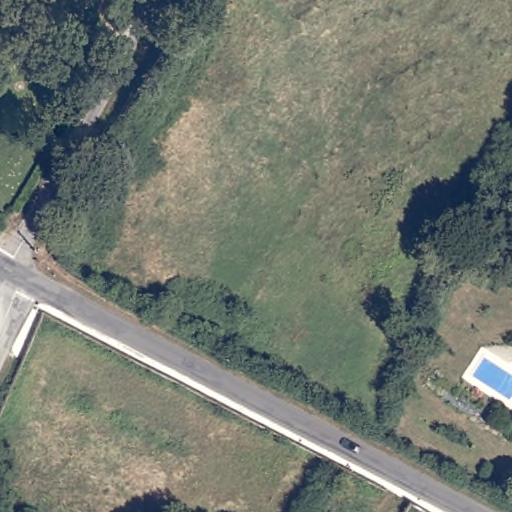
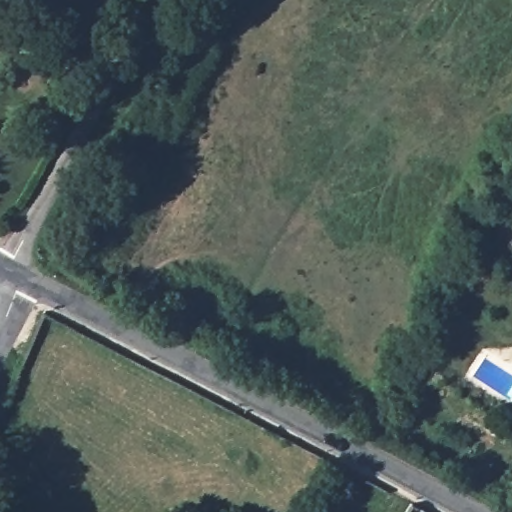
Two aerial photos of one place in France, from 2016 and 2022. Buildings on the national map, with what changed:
unchanged [(46,54),(34,69),(14,53),(26,38),(46,54)]

